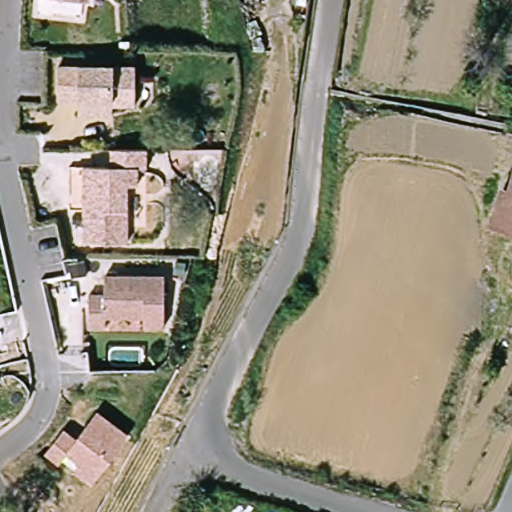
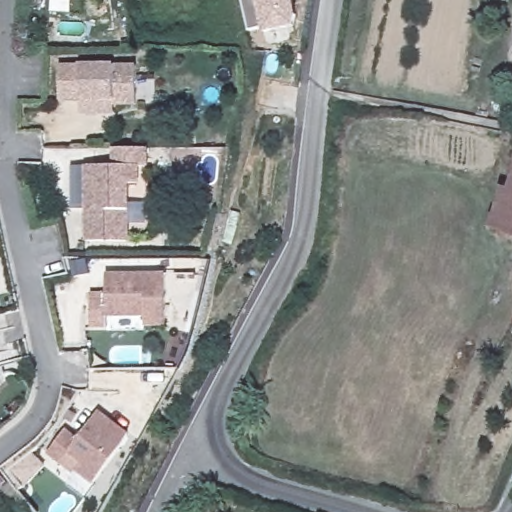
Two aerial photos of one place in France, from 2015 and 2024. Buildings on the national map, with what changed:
unchanged [(45,0),(96,0),(95,4),(45,0)]
new [(293,27),(263,34),(261,27),(248,31),(241,0),(294,0),(298,16),(293,27)]
unchanged [(136,62),(136,100),(113,101),(113,96),(80,97),(60,97),(59,64),(136,62)]
unchanged [(150,154),(150,172),(141,172),(141,189),(131,189),(130,230),(130,245),(87,246),(87,214),(88,171),(115,171),(115,153),(150,154)]
unchanged [(498,230),(512,186),(512,235),(498,230)]
unchanged [(168,275),(167,326),(146,326),(147,316),(108,316),(108,327),(91,327),(92,294),(108,294),(108,275),(168,275)]
unchanged [(130,437),(93,485),(75,471),(81,463),(68,453),(60,463),(46,453),(65,430),(78,440),(99,412),(130,437)]

